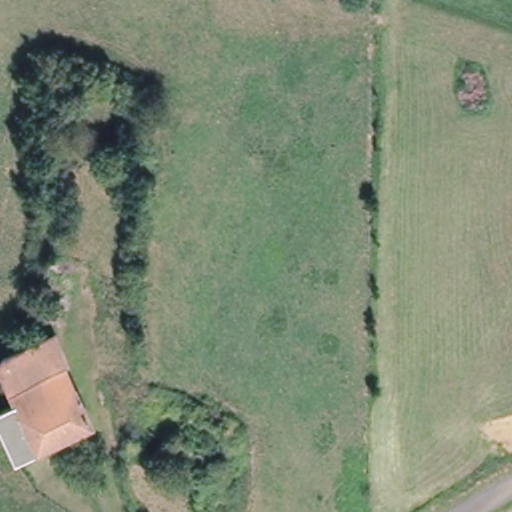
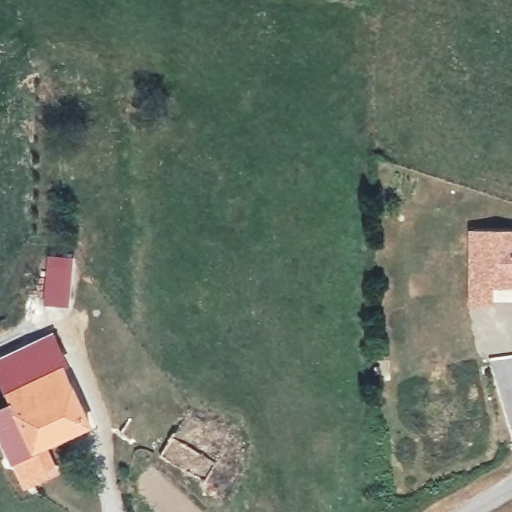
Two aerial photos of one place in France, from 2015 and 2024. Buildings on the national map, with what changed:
new [(512,230),(512,288),(493,287),(492,307),(468,307),(468,229),(512,230)]
new [(70,307),(45,305),(49,255),(76,257),(70,307)]
unchanged [(11,355),(57,335),(94,422),(20,456),(0,415),(0,411),(18,399),(3,364),(11,355)]

